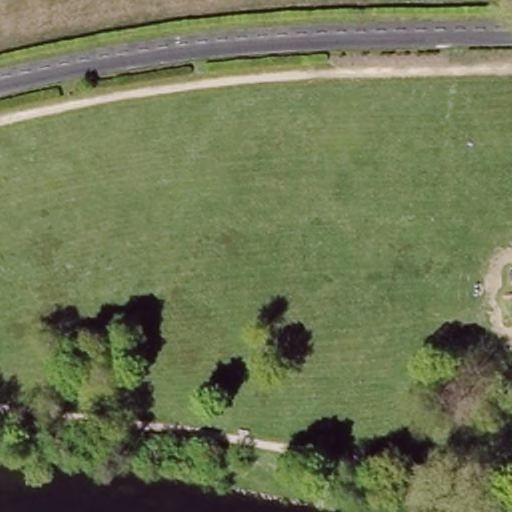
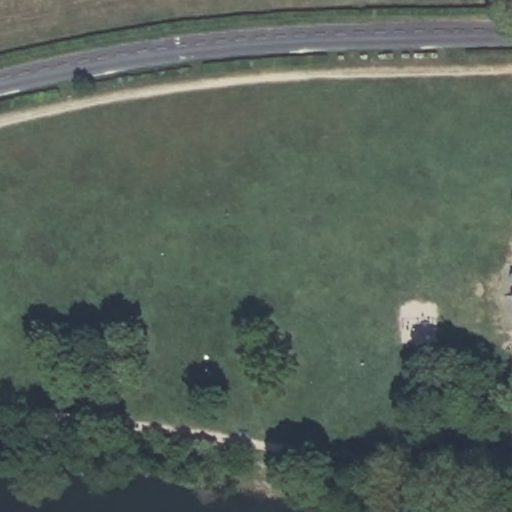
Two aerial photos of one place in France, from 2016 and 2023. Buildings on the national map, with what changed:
[]

